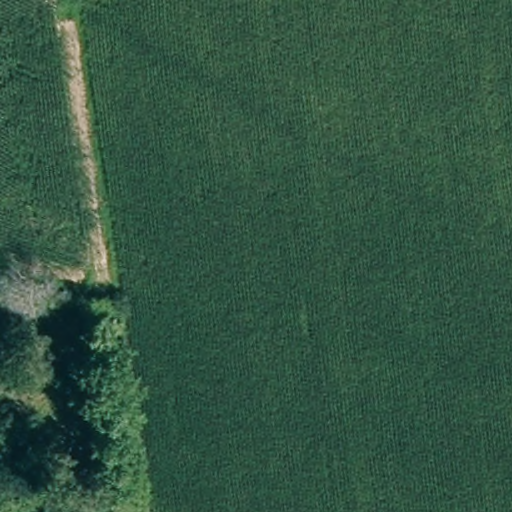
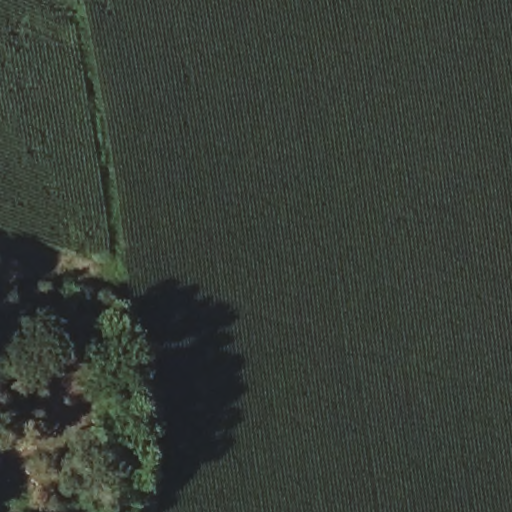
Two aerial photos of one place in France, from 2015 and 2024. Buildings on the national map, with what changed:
[]

